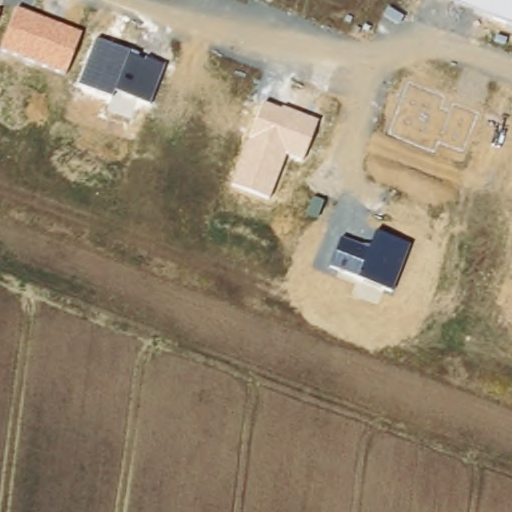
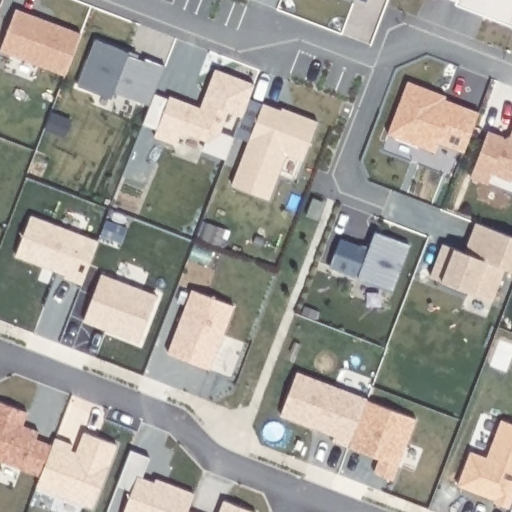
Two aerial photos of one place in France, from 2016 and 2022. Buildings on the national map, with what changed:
unchanged [(459,0),(512,0),(512,23),(457,4),(459,0)]
unchanged [(15,9),(80,35),(66,74),(0,49),(15,9)]
unchanged [(97,40),(164,67),(150,105),(114,90),(113,91),(111,98),(79,85),(97,40)]
new [(243,117),(228,112),(221,132),(235,138),(227,158),(204,150),(206,140),(186,132),(180,134),(176,144),(155,137),(157,129),(144,123),(150,105),(155,94),(170,98),(170,96),(200,106),(215,69),(255,84),(243,117)]
new [(445,96),(444,99),(452,103),(478,113),(463,152),(438,143),(435,152),(387,134),(407,81),(445,96)]
unchanged [(262,103),(317,123),(302,161),(285,155),(268,199),(230,185),(262,103)]
new [(502,136),(505,144),(510,142),(511,136),(512,134),(512,179),(510,180),(491,174),(487,184),(470,178),(487,131),(502,136)]
new [(465,253),(475,223),(512,237),(512,272),(505,269),(492,300),(468,292),(466,295),(445,287),(446,283),(430,277),(442,244),(455,249),(465,253)]
unchanged [(338,239),(368,249),(374,233),(406,246),(391,290),(360,278),(329,269),(338,239)]
new [(139,341),(84,321),(101,274),(155,294),(139,341)]
new [(212,369),(168,353),(191,289),(235,305),(212,369)]
new [(296,372),(366,399),(347,447),(331,441),(333,436),(280,415),(296,372)]
new [(366,399),(415,419),(392,480),(373,473),(379,459),(347,447),(366,399)]
new [(26,411),(21,424),(38,431),(23,469),(0,460),(0,401),(26,411)]
new [(460,484),(471,452),(488,458),(502,419),(512,423),(512,497),(509,504),(460,484)]
new [(117,444),(94,508),(38,485),(56,437),(80,445),(85,432),(117,444)]
new [(186,512),(124,512),(132,489),(118,484),(131,450),(150,457),(142,477),(155,482),(156,479),(195,493),(186,511),(186,512)]
new [(222,501),(252,512),(218,512),(222,501)]
new [(189,512),(186,512),(186,511),(189,512)]

